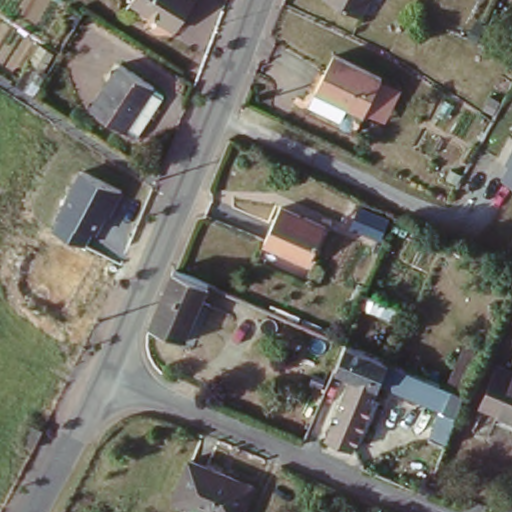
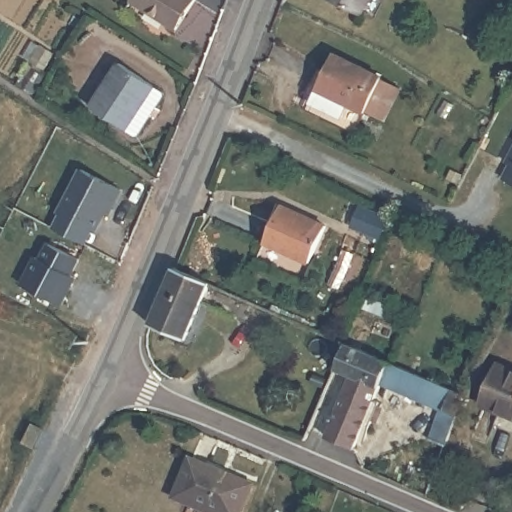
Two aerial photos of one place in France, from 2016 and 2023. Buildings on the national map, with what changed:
unchanged [(136,0),(195,0),(176,28),(136,0)]
unchanged [(329,0),(371,0),(362,17),(329,0)]
unchanged [(335,53),(385,76),(383,80),(403,92),(386,123),(366,113),(356,131),(306,106),(335,53)]
unchanged [(162,96),(142,130),(93,97),(111,66),(162,96)]
unchanged [(509,162),(512,156),(512,180),(505,176),(512,164),(509,162)]
unchanged [(122,189),(97,235),(94,233),(85,247),(48,227),(81,166),(122,189)]
unchanged [(312,261),(272,244),(287,208),(327,224),(312,261)]
new [(39,253),(44,256),(52,240),(81,256),(74,271),(79,274),(65,302),(26,280),(39,253)]
unchanged [(186,337),(151,322),(175,266),(209,282),(186,337)]
unchanged [(433,438),(443,408),(382,380),(375,398),(381,400),(363,443),(357,441),(356,445),(329,432),(353,371),(337,363),(346,337),(468,393),(450,444),(433,438)]
unchanged [(485,400),(498,368),(512,374),(512,418),(482,405),(485,400)]
unchanged [(249,487),(238,512),(203,512),(171,498),(190,460),(249,487)]

